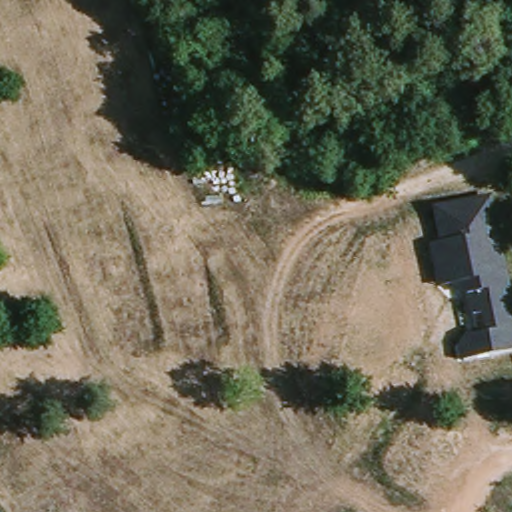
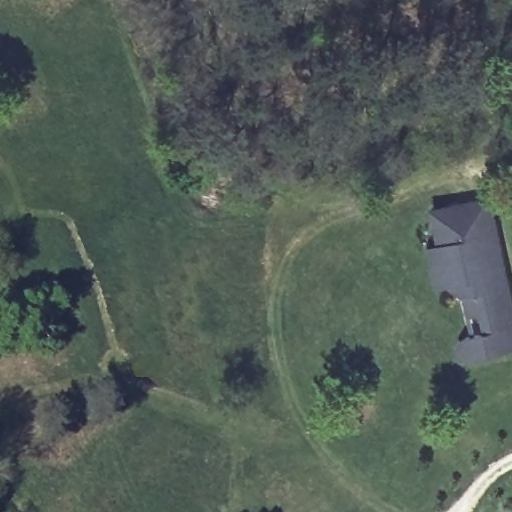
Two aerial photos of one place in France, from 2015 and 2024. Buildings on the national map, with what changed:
unchanged [(489,197),(512,300),(512,352),(465,362),(461,349),(468,338),(477,335),(469,295),(445,276),(438,277),(432,246),(443,244),(437,210),(489,197)]

